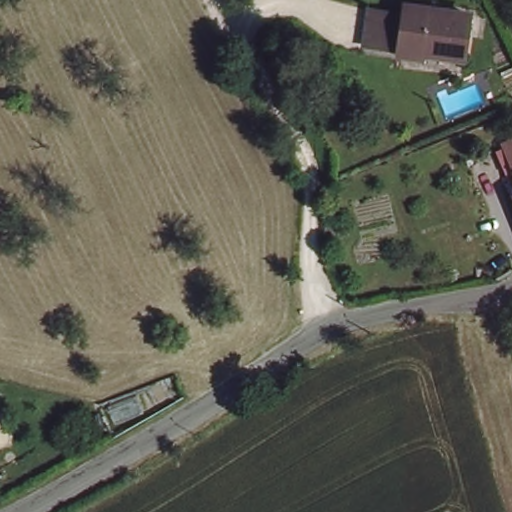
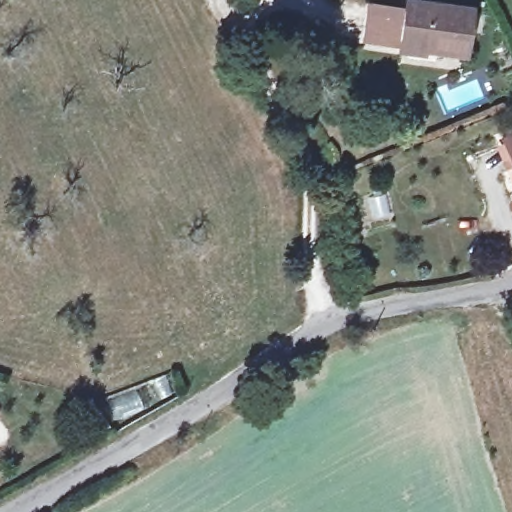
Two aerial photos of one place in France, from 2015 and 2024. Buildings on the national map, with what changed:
unchanged [(465,12),(462,55),(365,44),(367,17),(406,21),(406,4),(465,12)]
unchanged [(498,149),(512,142),(512,180),(498,149)]

